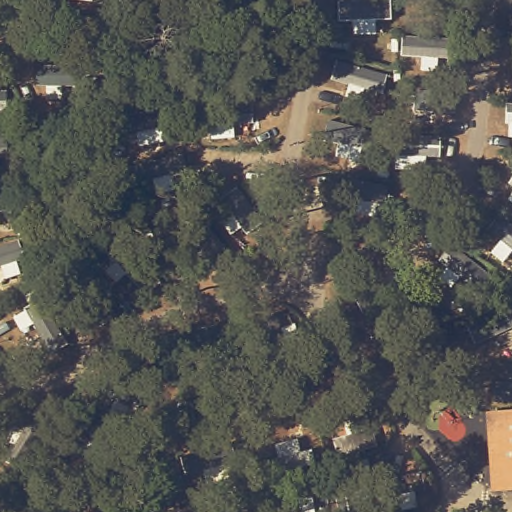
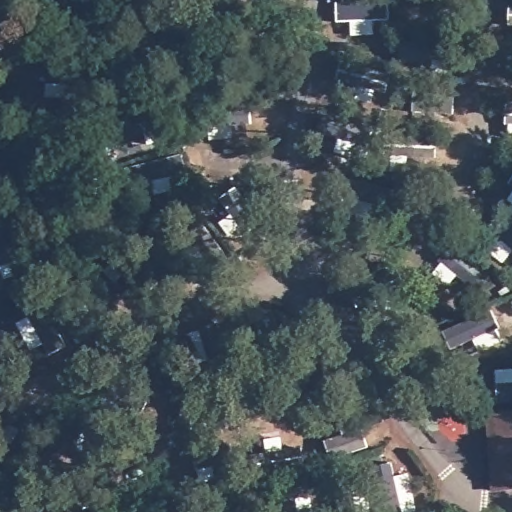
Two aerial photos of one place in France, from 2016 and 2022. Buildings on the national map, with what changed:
unchanged [(495,422),(495,413),(512,412),(512,491),(500,492),(495,422)]

